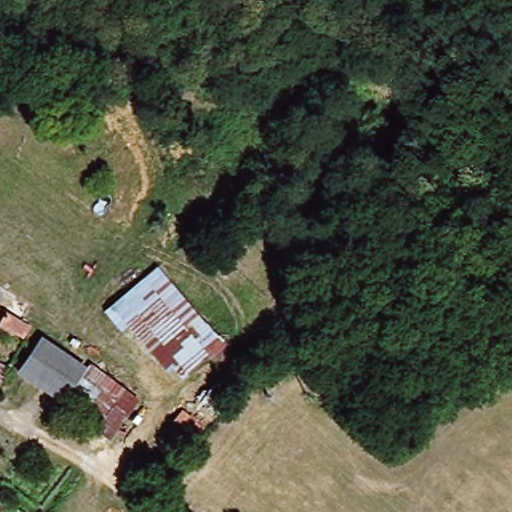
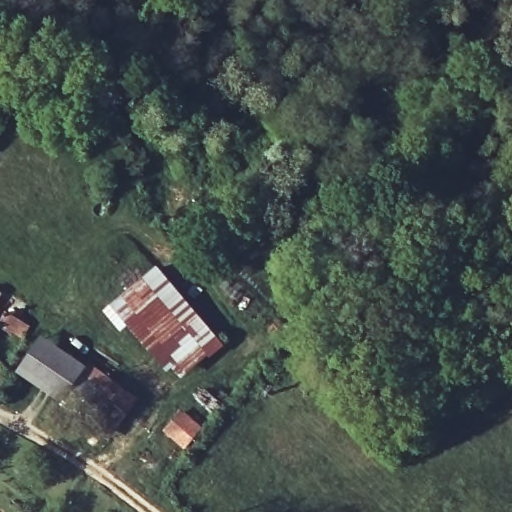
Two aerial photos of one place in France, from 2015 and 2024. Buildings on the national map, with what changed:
unchanged [(132,292),(164,269),(168,274),(208,332),(178,356),(142,306),(132,292)]
unchanged [(132,292),(142,306),(178,356),(208,332),(221,349),(181,382),(172,371),(165,377),(127,328),(120,334),(104,314),(132,292)]
unchanged [(0,324),(14,332),(8,342),(0,355),(0,325),(0,324)]
unchanged [(107,441),(67,408),(22,372),(44,347),(49,341),(86,372),(91,366),(97,372),(135,405),(107,441)]
unchanged [(152,437),(167,420),(180,432),(166,448),(152,437)]

